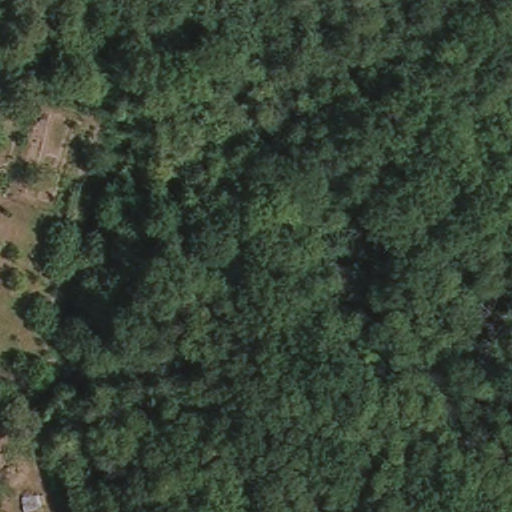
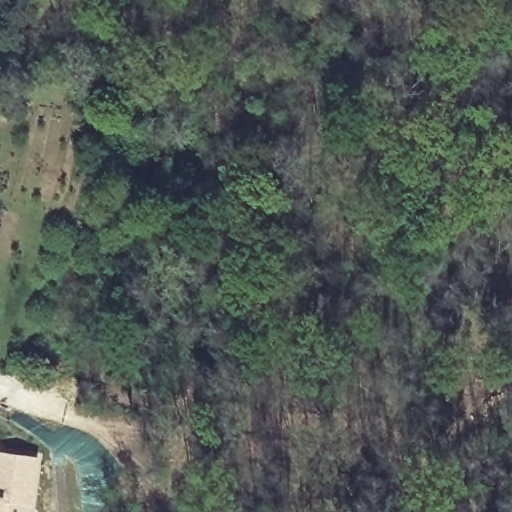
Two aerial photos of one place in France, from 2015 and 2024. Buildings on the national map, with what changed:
new [(43,456),(35,512),(0,512),(0,451),(43,456)]

